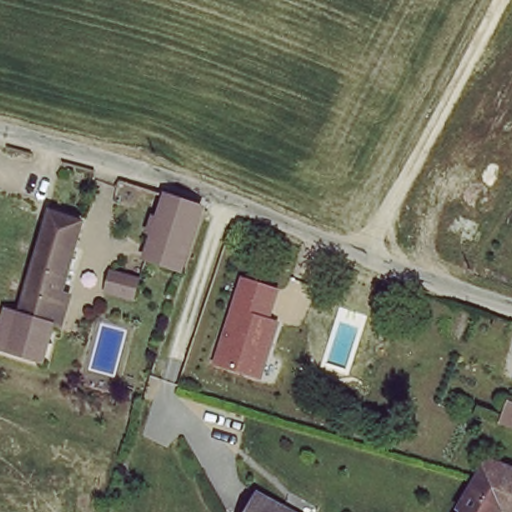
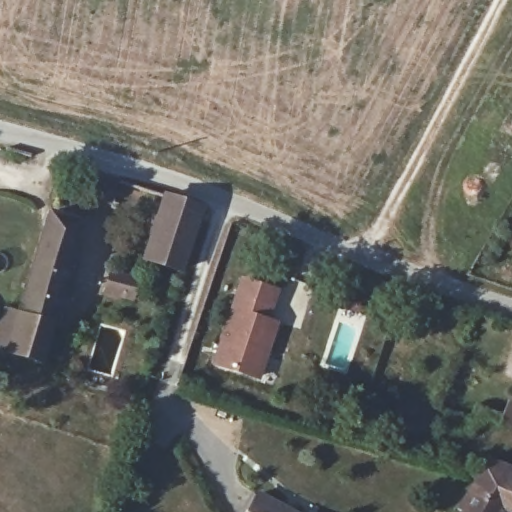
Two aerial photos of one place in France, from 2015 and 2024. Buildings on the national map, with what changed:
unchanged [(163,189),(213,206),(189,276),(141,260),(163,189)]
unchanged [(8,350),(48,212),(88,225),(49,360),(8,350)]
unchanged [(131,303),(103,293),(111,266),(141,276),(131,303)]
unchanged [(279,287),(269,318),(281,321),(261,380),(211,365),(239,277),(279,287)]
unchanged [(502,423),(504,411),(507,405),(508,400),(512,401),(512,425),(502,423)]
unchanged [(485,465),(490,455),(512,463),(512,512),(487,512),(462,503),(485,465)]
unchanged [(294,512),(252,512),(260,495),(294,512)]
unchanged [(462,503),(487,512),(457,512),(462,503)]

